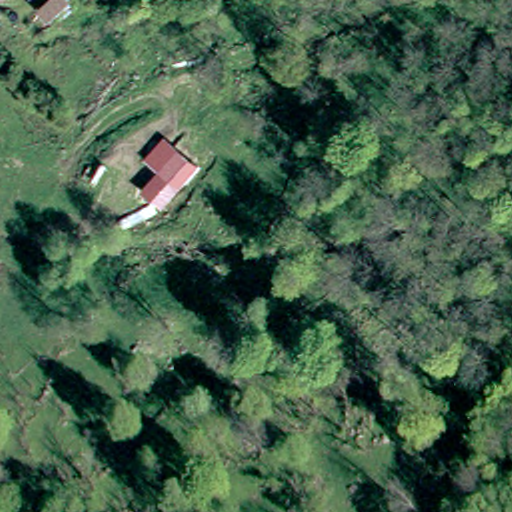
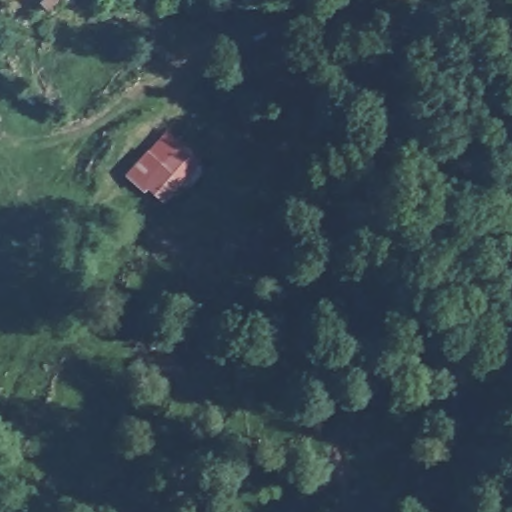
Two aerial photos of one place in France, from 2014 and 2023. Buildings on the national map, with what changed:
unchanged [(41,2),(43,0),(68,0),(48,13),(41,2)]
unchanged [(160,170),(177,152),(191,166),(178,181),(174,185),(159,171),(160,170)]

